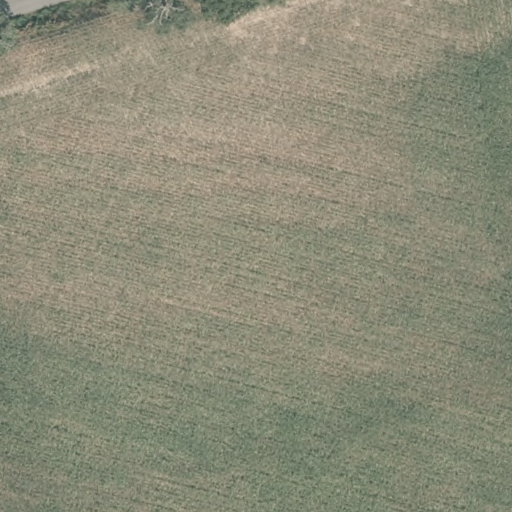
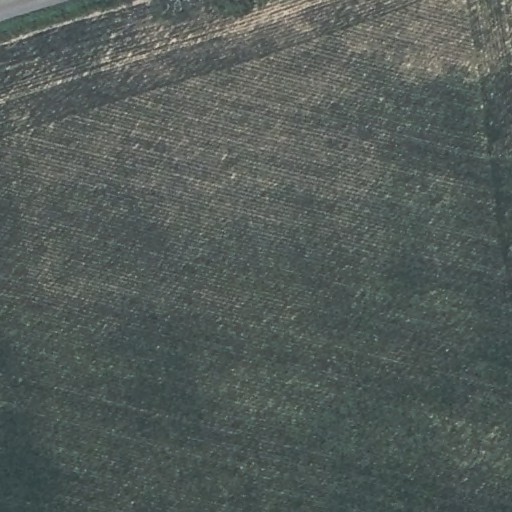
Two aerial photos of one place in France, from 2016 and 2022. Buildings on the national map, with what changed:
[]

